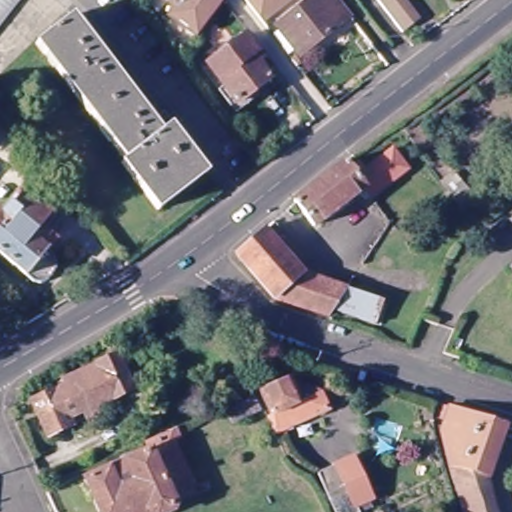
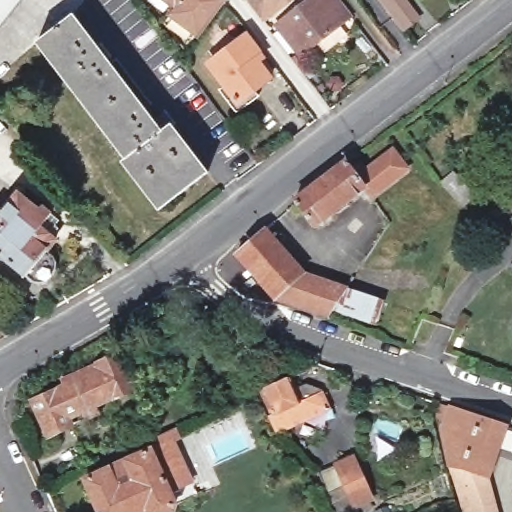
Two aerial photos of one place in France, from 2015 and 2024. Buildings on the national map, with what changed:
unchanged [(0,0),(20,0),(0,24),(0,0)]
unchanged [(203,39),(177,20),(182,11),(166,0),(225,0),(228,3),(203,39)]
unchanged [(262,12),(260,10),(253,0),(295,0),(269,21),(262,12)]
unchanged [(318,1),(317,0),(345,0),(349,5),(359,19),(352,24),(309,57),(287,26),(318,1)]
unchanged [(178,128),(175,130),(212,178),(161,215),(125,169),(128,165),(41,49),(75,20),(99,51),(103,48),(112,60),(109,63),(156,125),(168,116),(178,128)]
unchanged [(244,115),(227,92),(232,88),(216,67),(226,59),(221,54),(235,43),(240,39),(244,44),(253,36),(266,53),(279,71),(273,76),(277,82),(262,94),(266,99),(244,115)]
unchanged [(375,200),(368,192),(318,232),(299,209),(298,207),(349,169),(353,174),(355,173),(361,168),(367,174),(394,153),(397,152),(399,154),(412,172),(375,200)]
unchanged [(451,175),(471,199),(460,209),(440,185),(451,175)]
unchanged [(0,201),(7,207),(23,188),(44,204),(47,200),(56,208),(44,223),(60,237),(51,248),(56,254),(58,259),(56,267),(51,274),(43,277),(36,276),(30,274),(0,248),(0,201)]
unchanged [(511,219),(512,217),(512,220),(511,219)]
unchanged [(374,321),(345,310),(342,319),(282,299),(247,255),(274,230),(309,272),(353,289),(381,299),(374,321)]
unchanged [(73,423),(51,432),(37,398),(76,380),(74,373),(82,369),(84,373),(102,364),(101,362),(119,354),(135,388),(115,397),(114,395),(100,402),(103,409),(73,423)]
unchanged [(279,436),(271,419),(275,417),(262,389),(293,375),(299,391),(310,386),(320,381),(325,393),(334,411),(279,436)]
unchanged [(257,411),(237,421),(230,408),(252,398),(257,411)]
unchanged [(487,476),(484,477),(491,512),(459,512),(440,439),(443,423),(434,419),(437,403),(504,426),(487,476)]
unchanged [(186,502),(166,511),(166,512),(90,512),(78,486),(137,459),(133,449),(156,439),(166,434),(171,446),(161,450),(176,482),(186,502)]
unchanged [(376,499),(359,508),(361,512),(337,512),(333,501),(321,474),(357,458),(376,499)]

